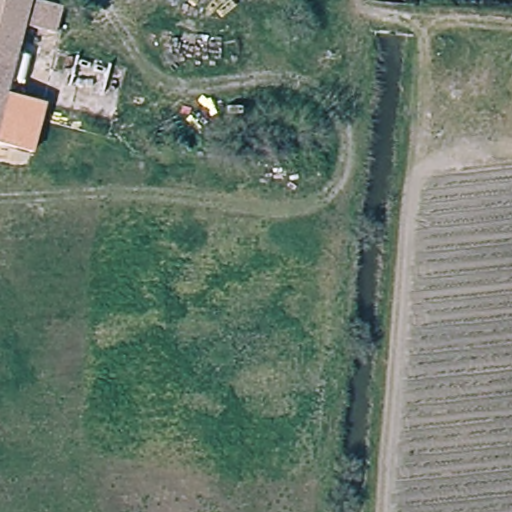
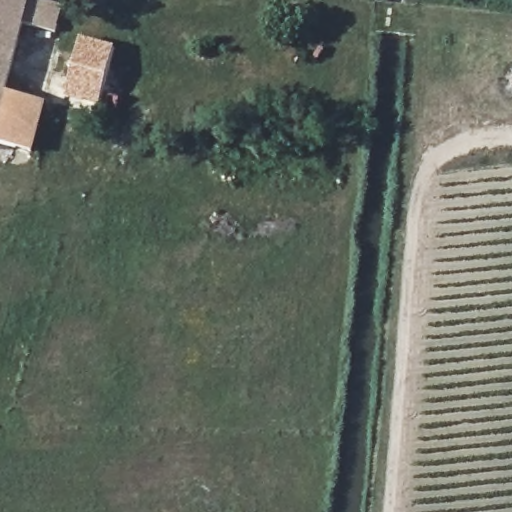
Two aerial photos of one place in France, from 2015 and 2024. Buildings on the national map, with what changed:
unchanged [(43,103),(31,151),(0,143),(0,0),(28,0),(4,94),(43,103)]
new [(65,98),(81,39),(116,48),(100,107),(65,98)]

